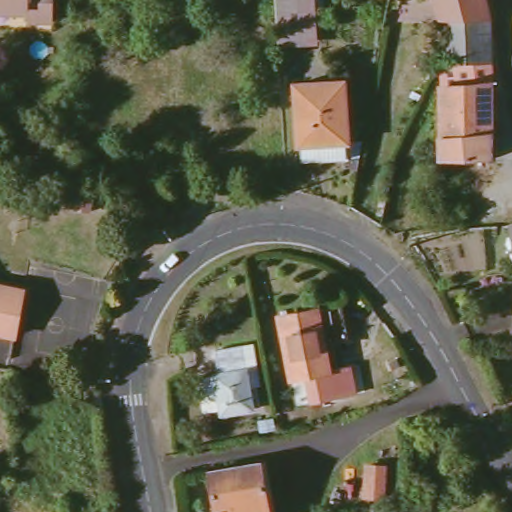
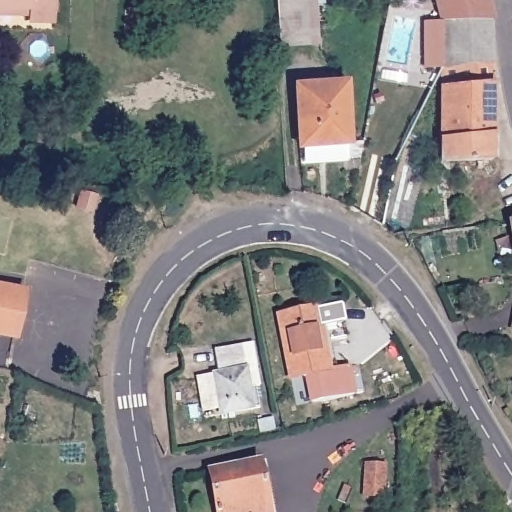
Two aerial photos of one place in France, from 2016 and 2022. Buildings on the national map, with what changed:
unchanged [(54,0),(53,16),(27,16),(28,10),(0,9),(0,0),(54,0)]
unchanged [(278,42),(275,0),(313,0),(316,39),(278,42)]
unchanged [(440,15),(436,0),(486,0),(490,15),(440,15)]
unchanged [(127,33),(127,8),(140,8),(138,34),(127,33)]
unchanged [(492,57),(440,60),(440,15),(490,15),(492,57)]
unchanged [(492,77),(492,155),(440,156),(440,83),(440,65),(440,60),(492,57),(492,77)]
unchanged [(292,135),(289,135),(285,75),(334,71),(338,131),(352,131),(350,148),(350,149),(337,150),(337,149),(292,152),(292,135)]
unchanged [(507,222),(512,221),(512,256),(507,225),(507,222)]
unchanged [(24,290),(15,337),(0,334),(0,286),(24,290)]
unchanged [(317,311),(329,371),(292,378),(280,318),(317,311)]
unchanged [(252,345),(255,359),(222,365),(220,351),(252,345)]
unchanged [(329,371),(352,368),(357,393),(309,402),(303,376),(329,371)]
unchanged [(251,371),(257,409),(227,415),(220,376),(251,371)]
unchanged [(383,466),(382,495),(363,494),(365,465),(383,466)]
unchanged [(256,466),(264,512),(212,512),(205,475),(256,466)]

